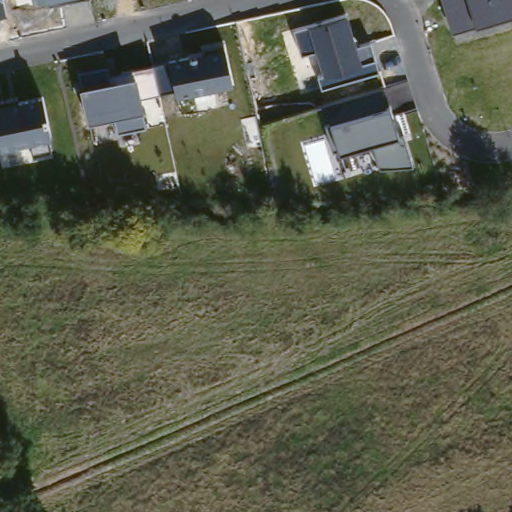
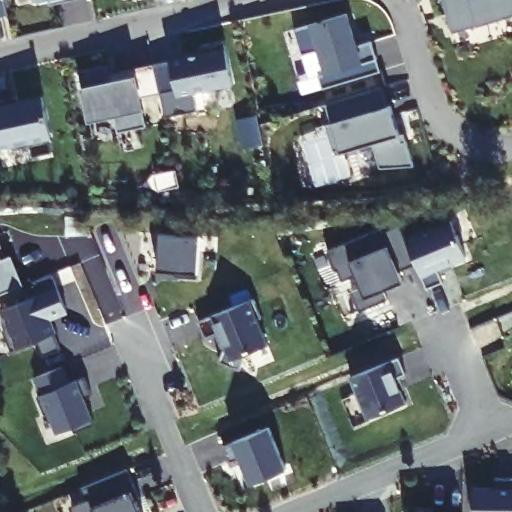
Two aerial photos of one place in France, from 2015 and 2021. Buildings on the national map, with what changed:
unchanged [(0,16),(0,0),(4,0),(8,14),(0,16)]
unchanged [(39,0),(47,0),(39,2),(39,0)]
unchanged [(477,25),(453,34),(443,0),(512,0),(512,14),(477,25)]
unchanged [(295,29),(308,25),(348,12),(356,44),(372,39),(379,70),(322,89),(317,76),(324,74),(316,48),(302,54),(295,29)]
unchanged [(81,87),(76,71),(108,64),(111,72),(153,62),(205,51),(205,44),(222,40),(224,47),(234,84),(176,96),(174,87),(141,95),(144,107),(146,125),(119,131),(116,114),(89,120),(81,87)]
unchanged [(51,135),(52,150),(33,154),(31,141),(0,147),(0,105),(43,96),(51,135)]
unchanged [(334,156),(325,125),(332,123),(391,106),(399,135),(404,132),(415,165),(379,167),(373,145),(340,153),(334,156)]
new [(451,223),(466,259),(437,271),(442,283),(426,290),(416,266),(406,241),(451,223)]
new [(381,232),(382,235),(400,228),(406,241),(416,266),(398,273),(403,284),(383,292),(387,302),(359,313),(351,295),(360,290),(355,278),(341,284),(337,273),(335,274),(327,255),(381,232)]
new [(201,234),(199,272),(156,269),(159,231),(201,234)]
new [(0,246),(0,239),(3,245),(0,246)]
new [(11,253),(22,282),(0,291),(0,254),(1,256),(11,253)]
new [(37,295),(31,281),(52,273),(67,310),(48,318),(60,350),(43,356),(37,340),(11,351),(2,330),(8,328),(1,310),(37,295)]
new [(206,338),(199,322),(254,299),(262,318),(258,320),(268,345),(247,354),(240,370),(219,361),(223,353),(215,335),(206,338)]
new [(399,358),(406,375),(395,378),(406,403),(367,419),(350,377),(399,358)]
new [(63,366),(70,383),(85,376),(92,395),(84,398),(95,425),(75,432),(72,427),(58,433),(49,412),(45,414),(37,396),(42,394),(35,377),(63,366)]
new [(269,427),(286,470),(250,484),(240,458),(230,463),(223,446),(269,427)]
new [(71,505),(85,500),(81,488),(127,470),(133,485),(139,498),(135,500),(140,512),(71,512),(69,506),(71,505)]
new [(495,490),(495,480),(512,480),(512,512),(473,512),(473,490),(495,490)]

